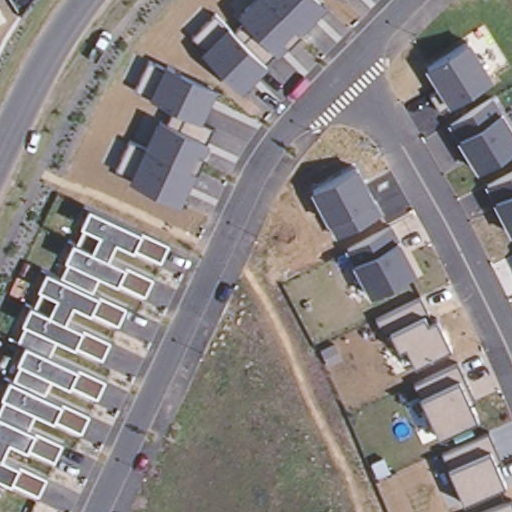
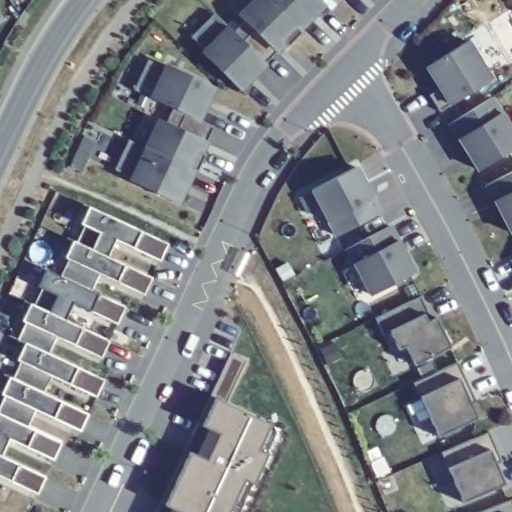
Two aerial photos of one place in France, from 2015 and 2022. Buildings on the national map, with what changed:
unchanged [(191,38),(216,12),(230,25),(235,32),(245,21),(238,14),(252,0),(322,0),(327,5),(278,53),(274,49),(262,60),(267,64),(240,92),(202,51),(191,38)]
unchanged [(440,112),(430,94),(438,89),(425,67),(470,40),(492,80),(449,106),(440,112)]
unchanged [(130,179),(131,175),(117,168),(131,140),(146,146),(159,117),(166,120),(173,106),(151,95),(135,88),(149,59),(165,64),(217,87),(202,120),(213,125),(206,140),(209,141),(181,203),(130,179)]
unchanged [(500,114),(512,133),(512,152),(478,172),(460,140),(449,122),(490,98),(500,114)]
unchanged [(328,222),(312,190),(357,165),(375,198),(381,212),(335,237),(328,222)]
unchanged [(512,172),(512,234),(511,235),(495,202),(487,185),(512,172)]
unchanged [(1,393),(9,375),(13,377),(21,360),(17,358),(23,345),(16,341),(25,322),(22,320),(30,302),(39,285),(47,268),(61,275),(70,259),(65,256),(73,239),(80,222),(90,205),(142,230),(170,243),(161,260),(134,249),(116,240),(109,256),(126,263),(155,278),(145,295),(117,282),(100,274),(92,290),(99,292),(127,306),(118,325),(90,311),(74,303),(66,318),(82,326),(111,339),(102,357),(75,345),(56,336),(49,352),(78,365),(106,379),(97,397),(70,384),(52,375),(44,391),(62,400),(90,413),(82,430),(54,418),(36,410),(28,425),(35,429),(63,442),(55,460),(27,448),(10,440),(3,455),(20,463),(47,476),(38,494),(11,481),(0,476),(0,404),(5,395),(1,393)]
unchanged [(399,240),(415,275),(370,295),(355,265),(347,247),(390,225),(399,240)]
unchanged [(419,300),(426,316),(429,321),(436,318),(449,348),(413,363),(405,345),(397,347),(391,332),(383,336),(377,320),(419,300)]
new [(231,353),(247,360),(228,405),(270,423),(259,450),(266,455),(254,482),(250,480),(237,512),(156,512),(231,353)]
unchanged [(460,362),(476,401),(470,403),(477,420),(437,437),(421,399),(415,383),(460,362)]
unchanged [(490,433),(502,462),(495,465),(505,486),(462,501),(450,470),(443,453),(490,433)]
unchanged [(512,501),(512,512),(483,512),(512,501)]

